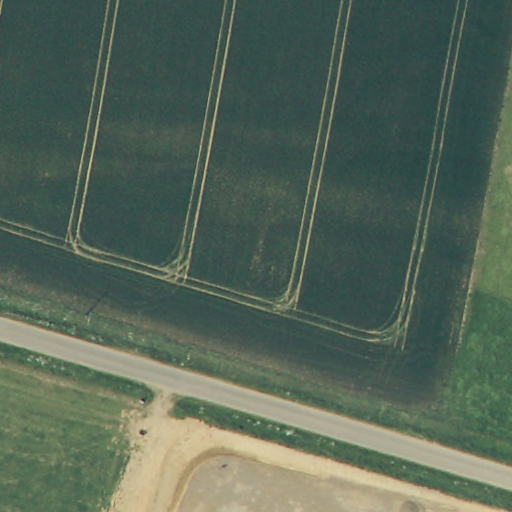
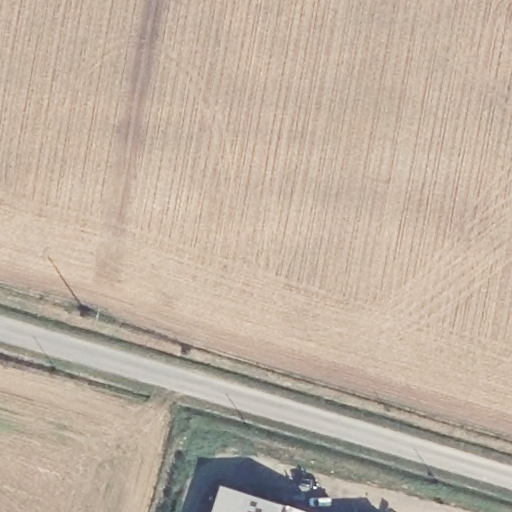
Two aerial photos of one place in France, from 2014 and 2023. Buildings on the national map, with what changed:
new [(219,486),(305,512),(210,512),(219,486)]

